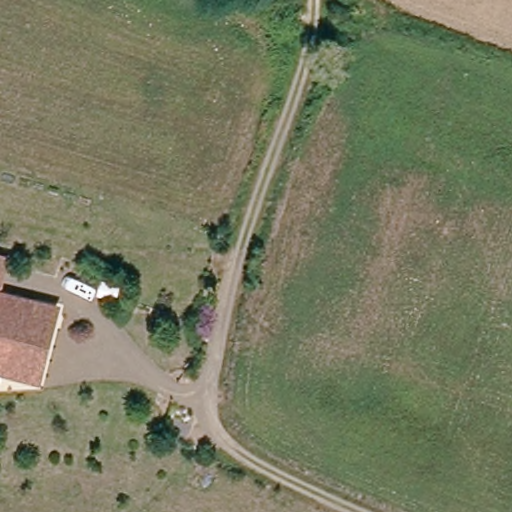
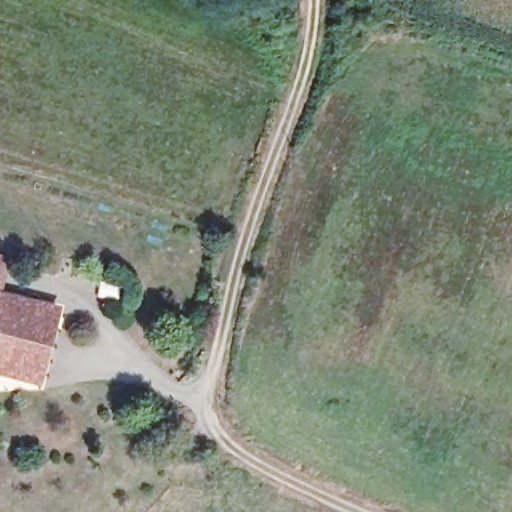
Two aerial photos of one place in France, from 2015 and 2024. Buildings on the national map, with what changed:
unchanged [(0,370),(0,255),(17,260),(7,295),(39,305),(65,313),(43,384),(0,370)]

